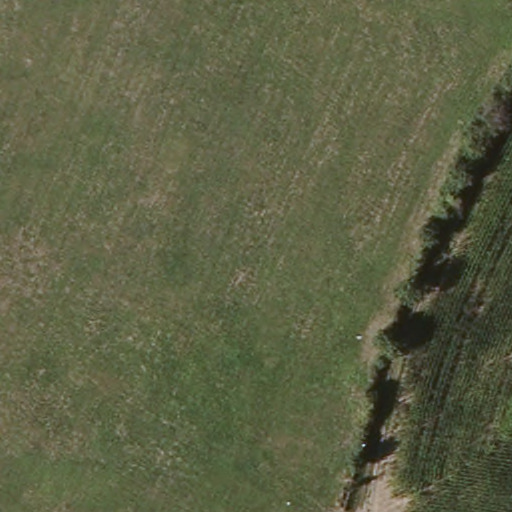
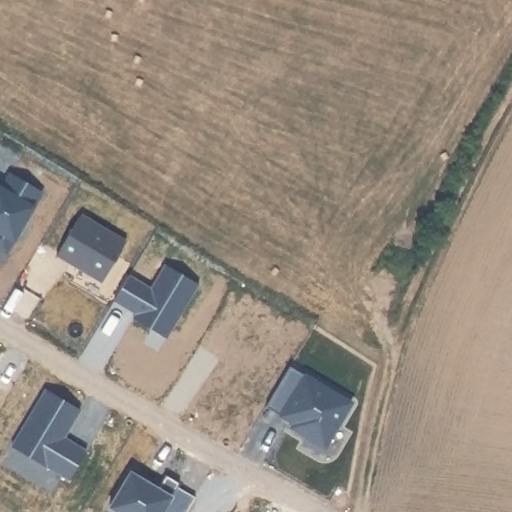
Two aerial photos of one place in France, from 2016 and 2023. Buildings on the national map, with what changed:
new [(14,172),(46,191),(10,252),(0,247),(0,184),(5,187),(14,172)]
new [(84,215),(130,242),(105,282),(60,255),(84,215)]
new [(132,275),(154,287),(169,263),(202,284),(170,338),(136,317),(140,311),(134,307),(132,310),(117,301),(132,275)]
new [(293,366),(355,403),(329,447),(295,427),(300,421),(288,413),(285,417),(269,407),(293,366)]
new [(49,389),(84,410),(66,438),(74,443),(75,441),(90,450),(72,480),(15,446),(49,389)]
new [(134,472),(161,488),(170,475),(184,482),(166,512),(121,512),(112,507),(134,472)]

